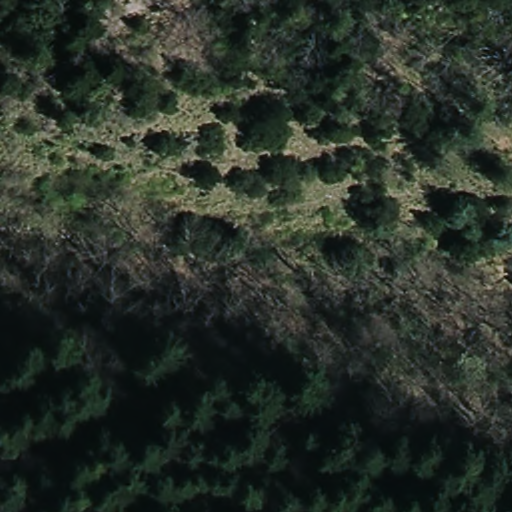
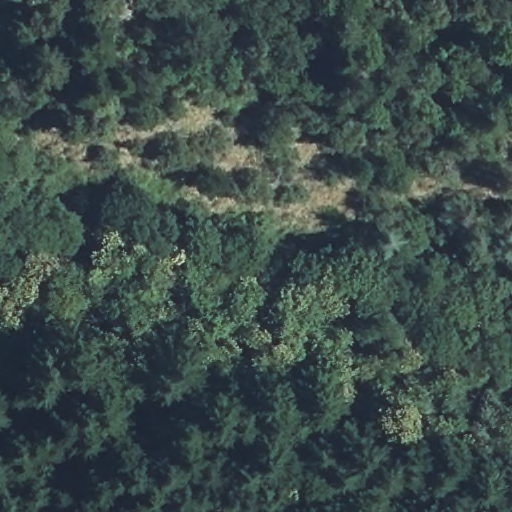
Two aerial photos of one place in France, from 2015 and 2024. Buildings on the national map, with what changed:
unchanged [(326,457),(345,471),(320,501),(300,486),(326,457)]

